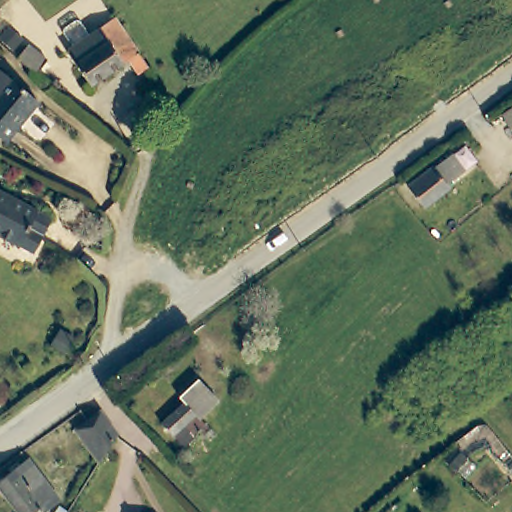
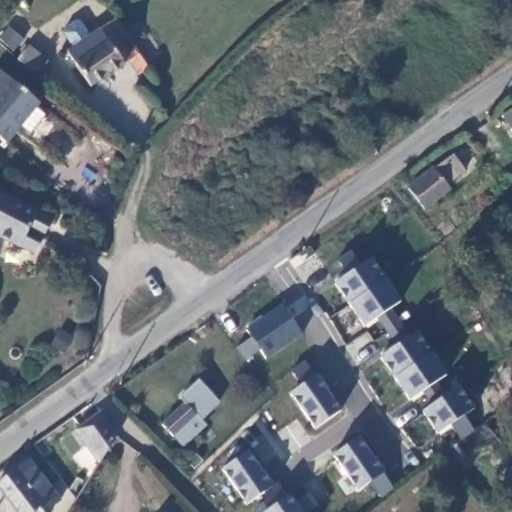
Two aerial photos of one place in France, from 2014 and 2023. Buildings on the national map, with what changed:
unchanged [(138,76),(128,62),(91,87),(61,41),(71,35),(77,43),(114,19),(148,69),(138,76)]
unchanged [(47,61),(36,75),(17,59),(28,45),(40,55),(47,61)]
unchanged [(5,144),(0,140),(0,73),(38,103),(5,144)]
unchanged [(506,141),(492,119),(512,106),(512,137),(506,141)]
unchanged [(433,166),(436,169),(454,155),(466,171),(448,185),(451,189),(426,209),(408,186),(433,166)]
unchanged [(41,240),(27,234),(18,251),(0,241),(0,196),(50,222),(41,240)]
new [(389,307),(408,335),(415,329),(446,374),(435,381),(444,394),(456,385),(473,409),(462,416),(469,427),(459,436),(452,425),(437,434),(422,412),(434,404),(424,391),(411,400),(381,357),(397,346),(378,317),(363,327),(335,283),(347,275),(337,258),(349,249),(359,265),(370,257),(399,302),(389,307)]
new [(312,429),(288,394),(302,384),(293,368),(306,359),(339,411),(312,429)]
unchanged [(210,442),(200,431),(195,437),(185,426),(174,437),(162,424),(185,403),(180,397),(186,391),(199,380),(220,401),(201,418),(207,425),(216,435),(210,442)]
unchanged [(96,467),(72,433),(97,414),(114,438),(96,467)]
new [(359,491),(332,453),(358,436),(383,474),(359,491)]
new [(244,505),(220,470),(248,450),(273,485),(244,505)]
unchanged [(49,491),(35,501),(38,505),(30,512),(29,512),(21,503),(15,508),(0,488),(0,466),(20,451),(49,491)]
new [(290,492),(302,512),(264,512),(262,510),(290,492)]
unchanged [(58,501),(51,512),(40,512),(50,496),(58,501)]

